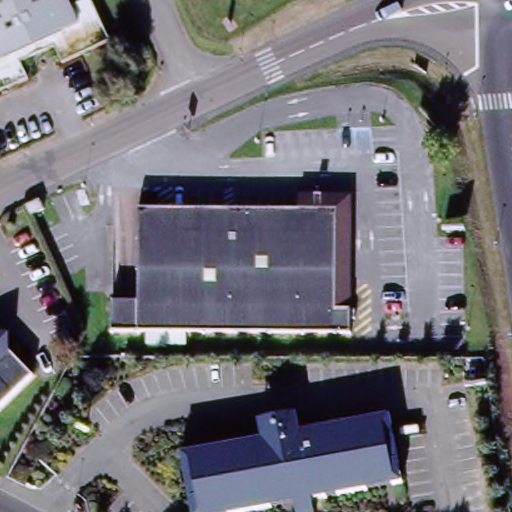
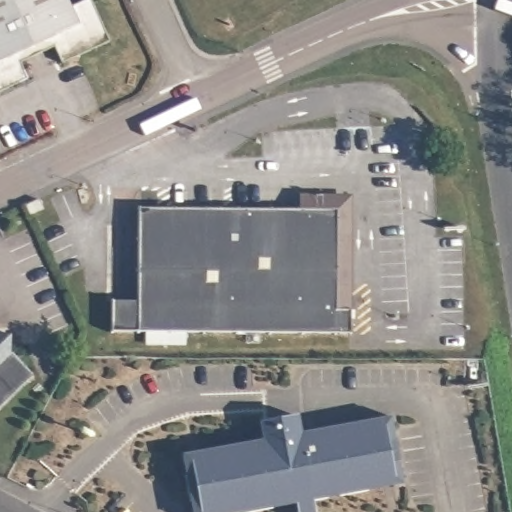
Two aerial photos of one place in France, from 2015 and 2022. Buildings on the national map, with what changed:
unchanged [(70,10),(90,1),(110,45),(60,66),(55,52),(16,69),(22,82),(0,91),(0,0),(66,0),(70,10)]
unchanged [(26,220),(20,207),(30,202),(36,215),(26,220)]
unchanged [(110,304),(137,304),(137,211),(335,209),(336,310),(350,310),(350,334),(137,335),(109,335),(110,304)]
unchanged [(9,352),(32,376),(0,408),(0,335),(10,335),(9,352)]
unchanged [(187,512),(177,454),(257,438),(254,423),(290,416),(292,431),(382,414),(397,485),(306,500),(308,512),(291,512),(290,504),(242,512),(187,512)]

